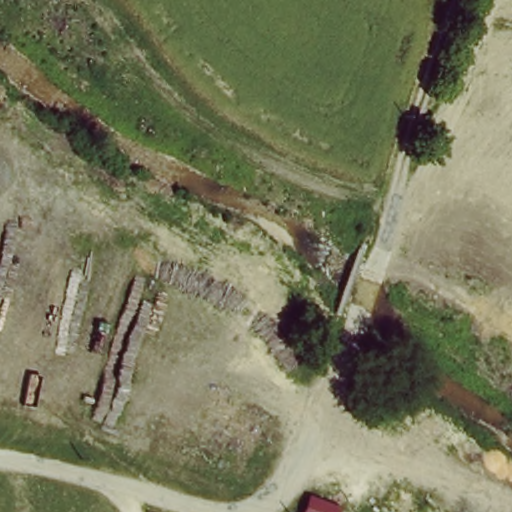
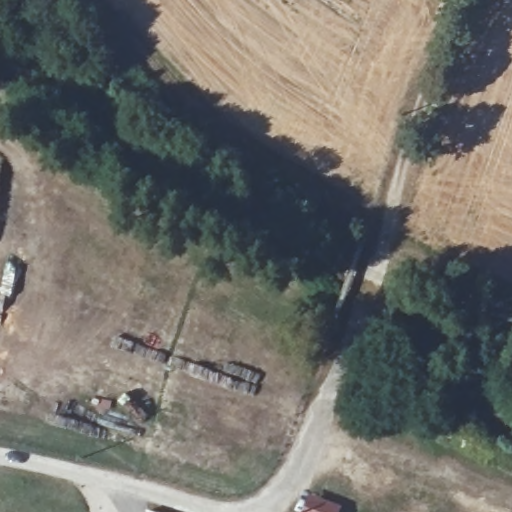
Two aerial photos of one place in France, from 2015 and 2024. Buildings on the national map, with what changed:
unchanged [(304,512),(310,497),(340,506),(337,512),(304,512)]

